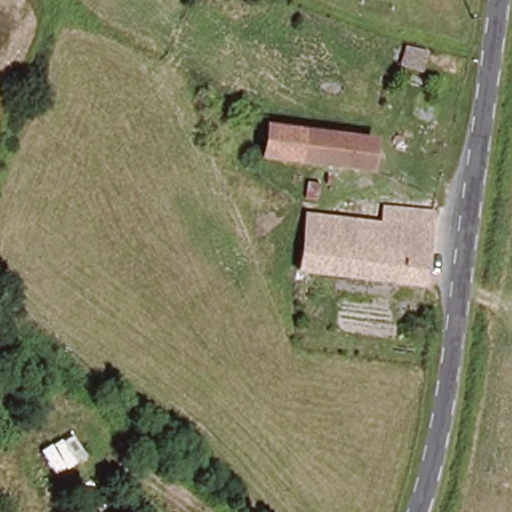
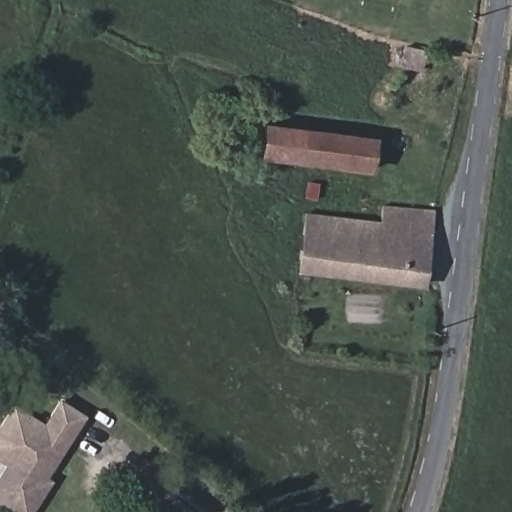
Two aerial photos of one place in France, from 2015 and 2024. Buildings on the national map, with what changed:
unchanged [(416,72),(396,67),(408,37),(429,45),(416,72)]
unchanged [(375,171),(308,163),(260,155),(264,126),(378,144),(375,171)]
unchanged [(405,286),(300,273),(302,215),(384,226),(386,216),(412,219),(405,286)]
unchanged [(432,222),(423,288),(405,286),(412,219),(432,222)]
new [(48,477),(54,481),(34,512),(11,512),(0,505),(0,472),(5,465),(0,461),(0,424),(14,403),(44,423),(61,398),(88,415),(48,477)]

